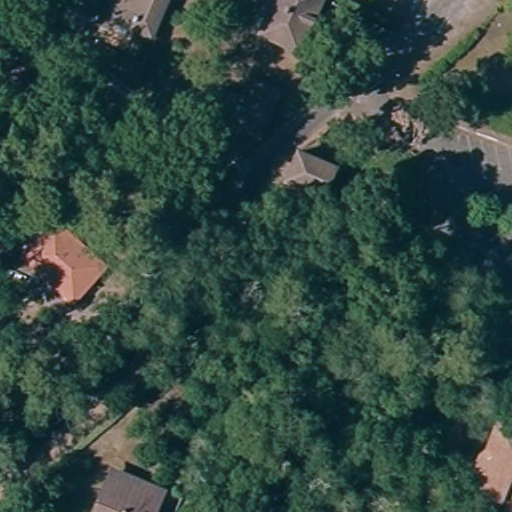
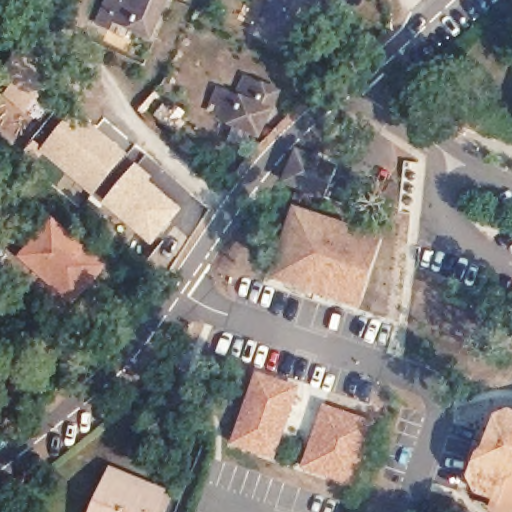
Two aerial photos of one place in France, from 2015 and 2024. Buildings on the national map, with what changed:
unchanged [(125,0),(165,0),(150,35),(116,20),(125,0)]
unchanged [(325,7),(301,58),(262,40),(276,10),(257,0),(328,0),(325,7)]
unchanged [(226,127),(211,117),(220,97),(237,104),(246,84),(278,99),(258,142),(226,127)]
new [(40,150),(76,110),(129,152),(94,195),(40,150)]
unchanged [(285,180),(297,151),(337,169),(330,189),(333,191),(330,198),(326,196),(326,198),(285,180)]
new [(139,163),(154,177),(150,181),(182,209),(152,244),(105,203),(139,163)]
new [(361,311),(270,280),(293,205),(383,235),(361,311)]
unchanged [(40,268),(23,253),(54,217),(105,262),(93,276),(74,298),(40,268)]
new [(257,370),(300,384),(276,458),(232,444),(257,370)]
new [(325,402),(378,418),(356,487),(302,468),(325,402)]
unchanged [(495,512),(493,512),(496,500),(480,493),(483,482),(471,478),(480,453),(490,456),(491,451),(488,448),(497,425),(506,428),(510,418),(512,419),(512,512),(495,512)]
unchanged [(112,476),(160,495),(154,512),(97,512),(104,495),(112,476)]
demolished [(414,488),(410,500),(399,497),(403,485),(414,488)]

